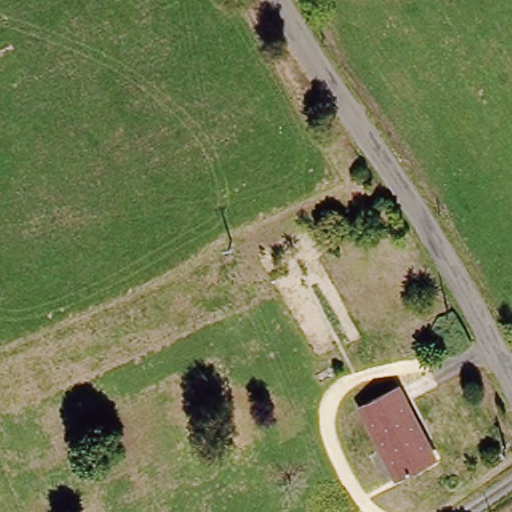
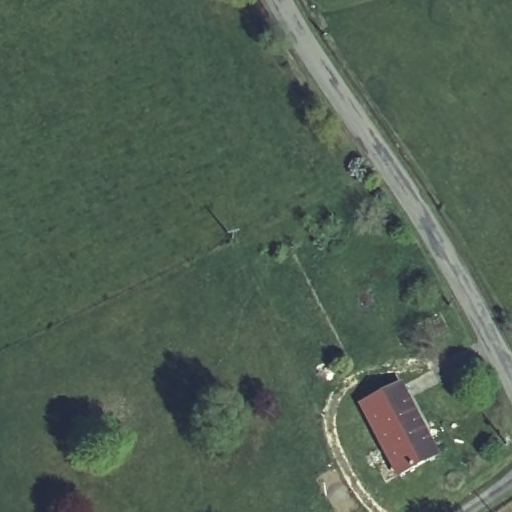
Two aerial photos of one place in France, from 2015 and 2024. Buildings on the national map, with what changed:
unchanged [(364,417),(357,405),(395,382),(401,393),(438,454),(399,477),(364,417)]

